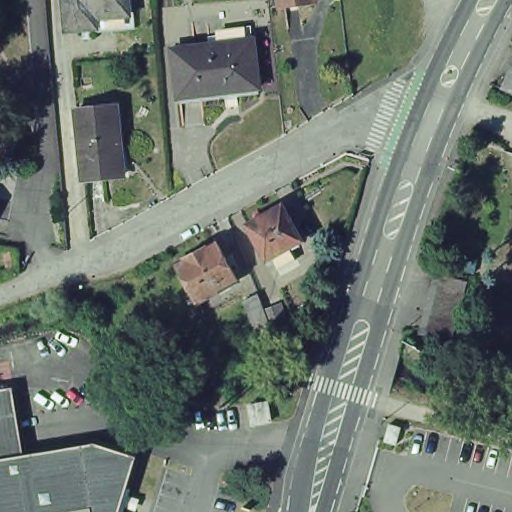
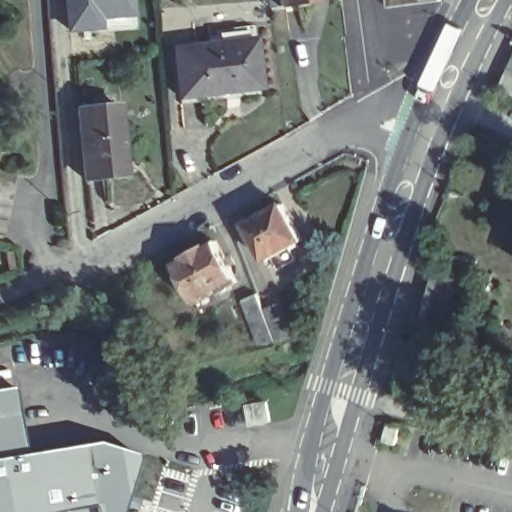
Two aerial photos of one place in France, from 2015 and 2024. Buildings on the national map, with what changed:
unchanged [(70,29),(67,29),(65,0),(128,0),(130,24),(70,29)]
unchanged [(280,10),(279,0),(319,0),(320,6),(280,10)]
unchanged [(255,41),(260,85),(222,89),(223,93),(181,97),(177,49),(255,41)]
unchanged [(500,94),(512,69),(512,99),(500,94)]
unchanged [(117,106),(125,176),(83,180),(77,110),(117,106)]
unchanged [(307,248),(272,267),(253,232),(287,214),(307,248)]
unchanged [(237,288),(198,310),(177,271),(216,250),(237,288)]
unchanged [(451,341),(422,333),(438,273),(469,282),(451,341)]
unchanged [(278,338),(263,346),(243,300),(260,292),(266,307),(282,302),(285,311),(295,332),(278,338)]
unchanged [(13,411),(15,417),(0,420),(0,393),(10,391),(13,411)]
unchanged [(273,421),(255,424),(252,404),(270,401),(273,421)]
unchanged [(0,461),(0,420),(15,417),(17,429),(21,457),(0,461)]
unchanged [(132,458),(117,512),(91,512),(90,508),(67,512),(0,512),(0,461),(21,457),(91,445),(132,458)]
unchanged [(91,512),(67,512),(90,508),(91,512)]

